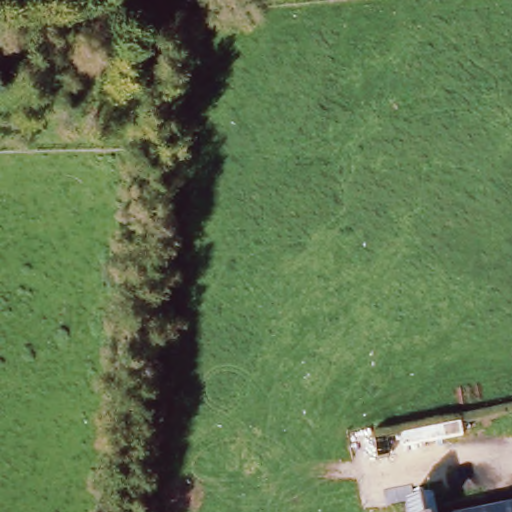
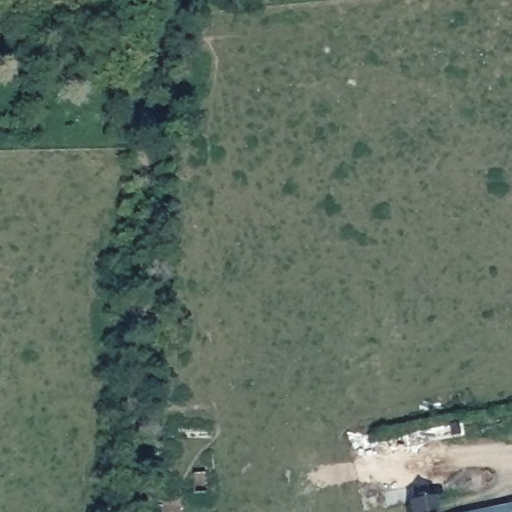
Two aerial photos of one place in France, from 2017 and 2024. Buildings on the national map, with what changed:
unchanged [(435,488),(440,512),(403,512),(400,495),(435,488)]

